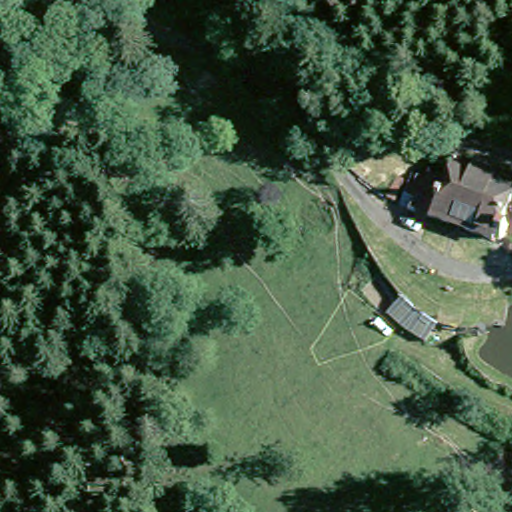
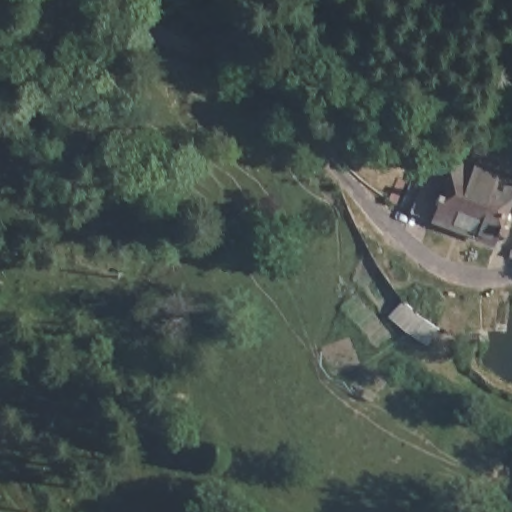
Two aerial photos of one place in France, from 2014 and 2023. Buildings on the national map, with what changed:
unchanged [(502,245),(495,243),(493,247),(414,214),(428,178),(449,186),(458,165),(482,174),(512,185),(512,203),(502,226),(508,230),(502,245)]

